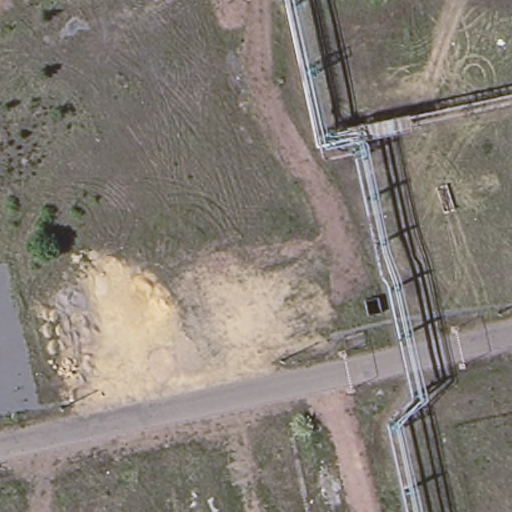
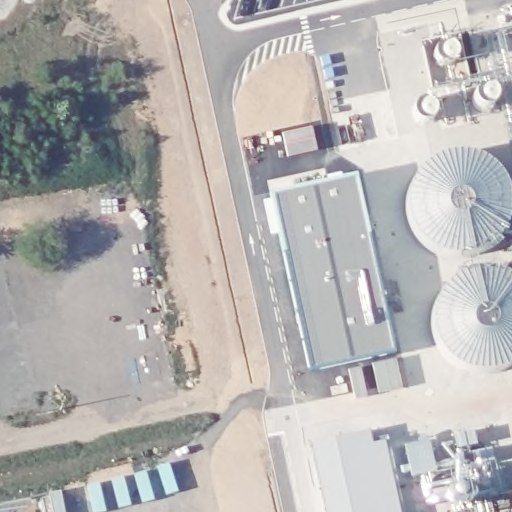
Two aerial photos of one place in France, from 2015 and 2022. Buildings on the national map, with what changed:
new [(358,174),(396,352),(313,369),(274,192),(358,174)]
new [(373,442),(387,439),(402,512),(327,512),(312,442),(370,430),(373,442)]

